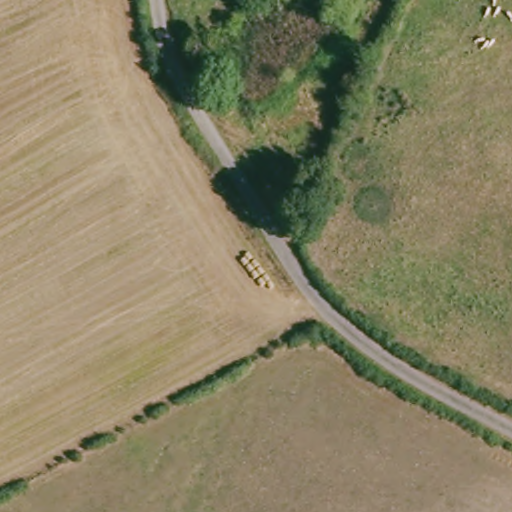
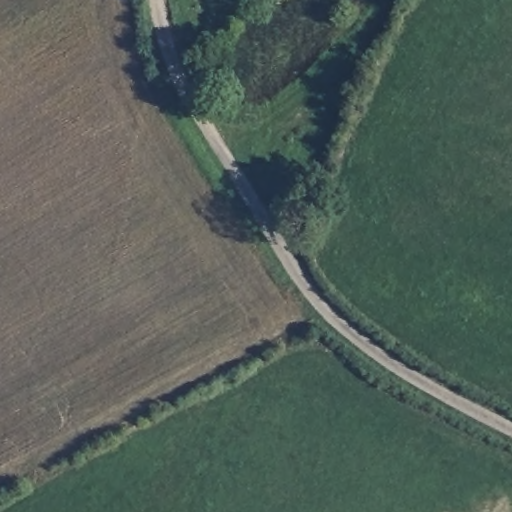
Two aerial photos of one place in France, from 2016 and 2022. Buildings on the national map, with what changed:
unchanged [(177,14),(175,0),(194,0),(196,10),(177,14)]

